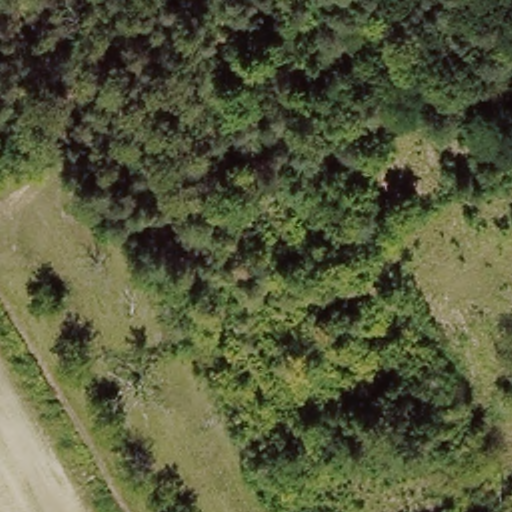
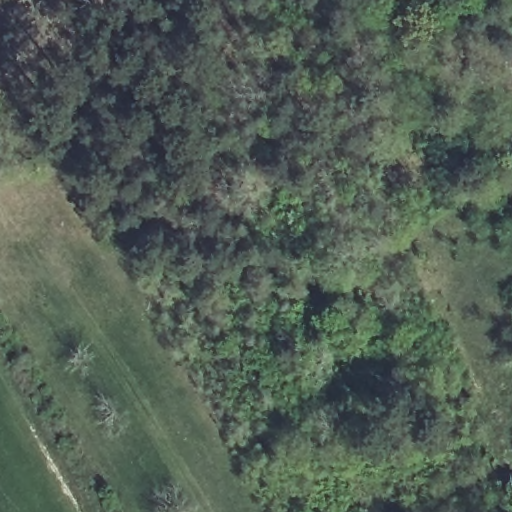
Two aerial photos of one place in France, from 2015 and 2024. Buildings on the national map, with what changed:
[]

